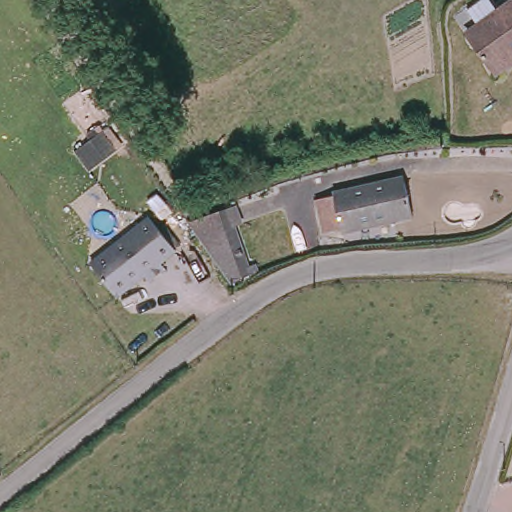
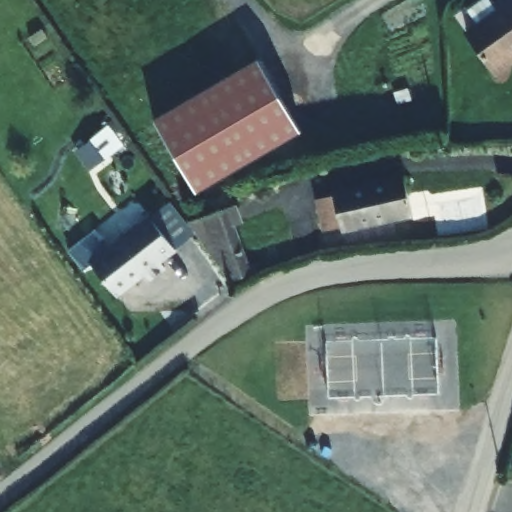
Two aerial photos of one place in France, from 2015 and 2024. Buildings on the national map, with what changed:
unchanged [(512,60),(511,60),(512,61),(512,66),(496,77),(455,20),(484,0),(490,0),(500,14),(512,7),(512,60)]
new [(197,191),(155,120),(259,59),(301,130),(197,191)]
new [(86,170),(75,153),(100,134),(112,150),(86,170)]
unchanged [(317,201),(335,197),(333,192),(404,175),(413,214),(342,230),(340,224),(332,226),(324,227),(317,201)]
unchanged [(234,283),(222,267),(190,221),(226,208),(244,257),(250,274),(234,283)]
unchanged [(137,223),(161,255),(148,265),(153,273),(140,282),(135,275),(115,290),(91,257),(137,223)]

